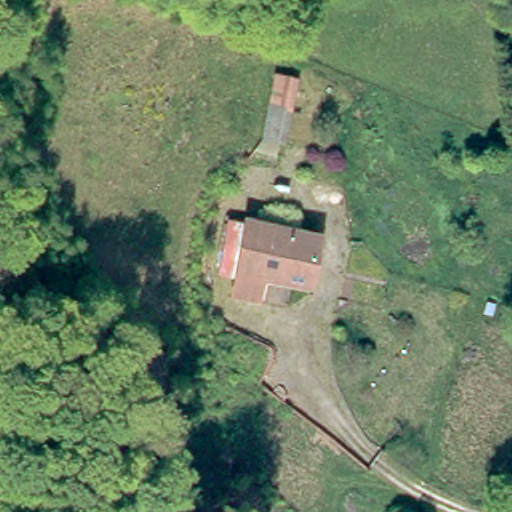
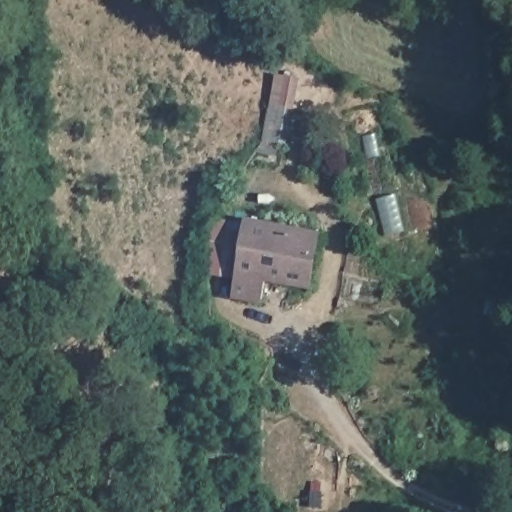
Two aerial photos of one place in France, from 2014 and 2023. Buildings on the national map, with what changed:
unchanged [(262,136),(271,96),(293,99),(288,139),(262,136)]
unchanged [(227,300),(229,293),(235,276),(246,226),(272,232),(319,242),(309,292),(259,281),(254,306),(227,300)]

